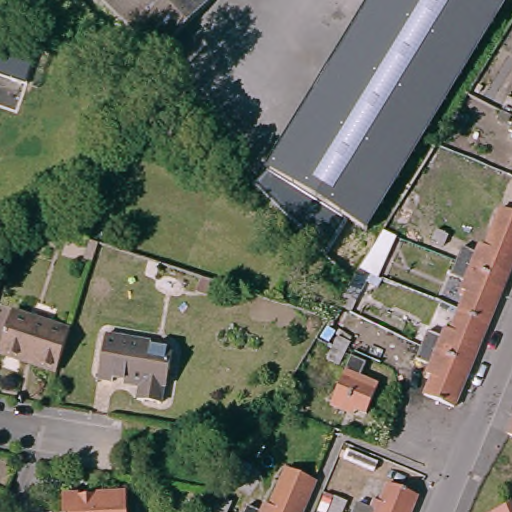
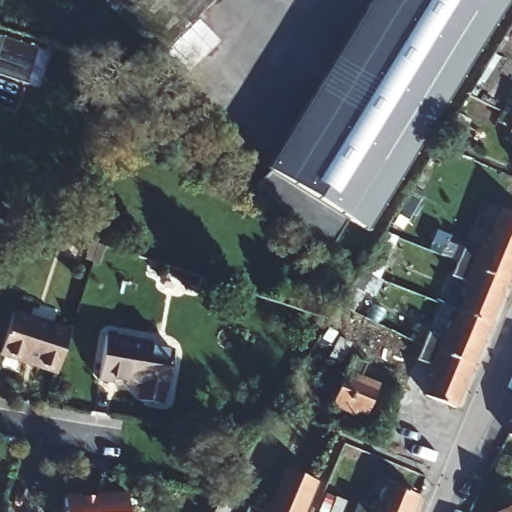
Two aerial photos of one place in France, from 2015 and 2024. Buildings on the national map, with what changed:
unchanged [(157,50),(108,0),(208,0),(157,50)]
unchanged [(365,224),(271,165),(372,0),(503,0),(365,224)]
unchanged [(0,41),(0,33),(2,34),(0,41)]
unchanged [(510,128),(512,123),(512,129),(510,128)]
unchanged [(458,310),(467,290),(461,287),(465,279),(449,272),(455,259),(460,244),(476,251),(479,243),(485,245),(501,206),(512,211),(512,262),(505,279),(488,322),(458,310)]
unchanged [(51,355),(47,365),(1,350),(15,307),(61,322),(51,355)]
unchanged [(424,394),(432,374),(426,371),(428,366),(415,360),(421,344),(427,329),(441,335),(445,327),(450,330),(458,310),(488,322),(486,327),(471,365),(455,406),(454,407),(424,394)]
unchanged [(123,377),(110,375),(110,379),(95,376),(102,329),(130,335),(128,342),(145,345),(145,342),(170,347),(163,384),(160,383),(157,401),(136,397),(138,385),(122,382),(123,377)]
unchanged [(326,364),(332,350),(336,342),(345,346),(341,354),(335,368),(326,364)]
unchanged [(362,417),(345,410),(343,415),(327,408),(340,376),(341,377),(346,361),(361,367),(355,382),(372,389),(362,417)]
unchanged [(505,431),(512,416),(512,434),(505,431)]
unchanged [(260,507),(264,500),(270,502),(285,464),(306,472),(315,475),(300,512),(243,512),(248,502),(260,507)]
unchanged [(373,507),(376,501),(381,503),(390,484),(418,495),(412,512),(356,512),(360,502),(373,507)]
unchanged [(229,497),(225,509),(223,512),(208,512),(212,504),(220,492),(229,497)]
unchanged [(61,512),(60,498),(123,493),(124,512),(61,512)]
unchanged [(337,497),(349,502),(346,512),(332,512),(333,508),(337,497)]
unchanged [(490,512),(512,502),(512,512),(490,512)]

